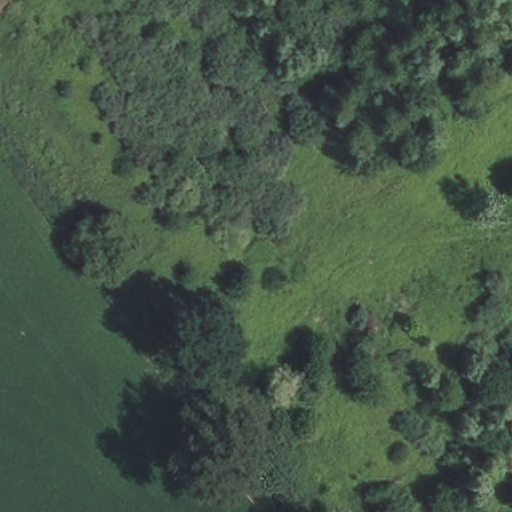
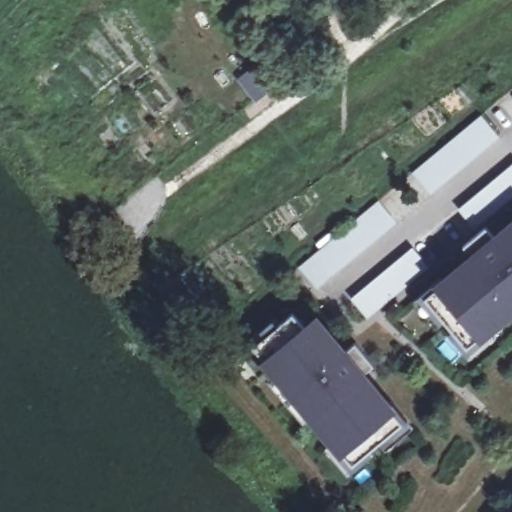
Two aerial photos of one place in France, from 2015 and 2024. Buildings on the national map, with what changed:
new [(482,116),(500,137),(431,194),(414,173),(482,116)]
new [(474,227),(460,210),(512,167),(512,195),(474,227)]
new [(379,202),(397,223),(318,289),(300,268),(379,202)]
new [(485,229),(490,236),(512,219),(512,316),(479,342),(477,338),(466,347),(426,297),(437,289),(433,284),(468,254),(465,246),(485,229)]
new [(427,265),(366,316),(352,300),(414,248),(427,265)]
new [(295,313),(305,325),(317,315),(346,349),(355,342),(373,364),(365,371),(398,410),(393,413),(401,423),(352,464),(345,453),(340,456),(308,419),(304,422),(270,382),(274,378),(260,361),(263,358),(254,346),(295,313)]

